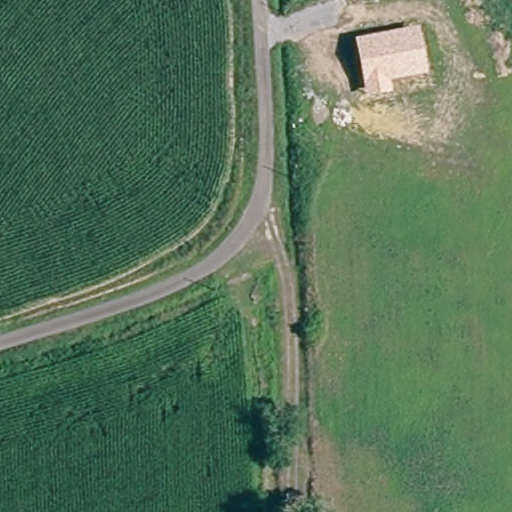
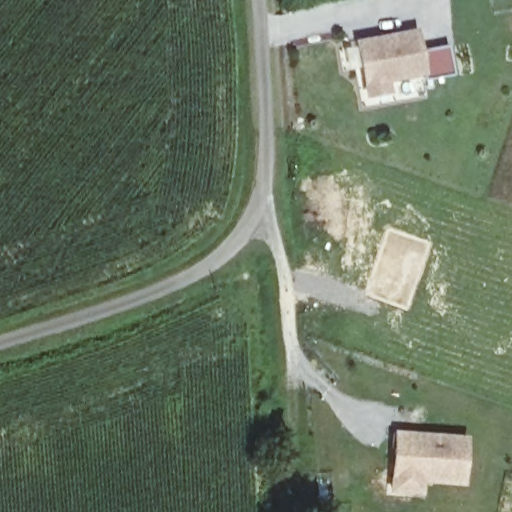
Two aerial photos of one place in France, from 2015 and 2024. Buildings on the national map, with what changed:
unchanged [(427,75),(391,84),(392,94),(365,99),(354,39),(418,29),(427,75)]
new [(470,437),(467,486),(426,484),(425,495),(389,493),(395,431),(470,437)]

